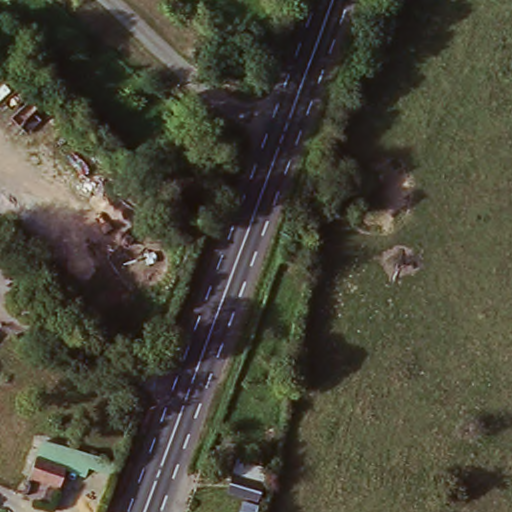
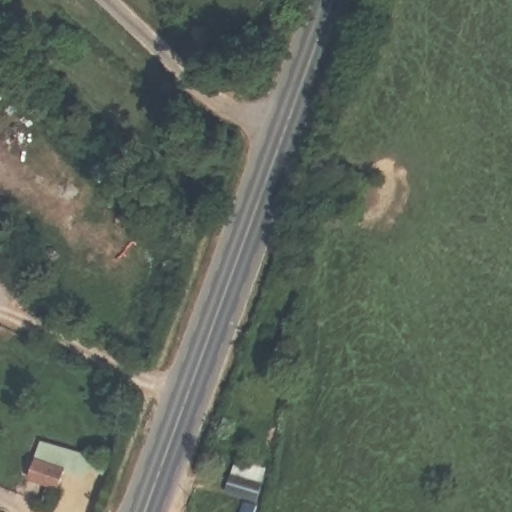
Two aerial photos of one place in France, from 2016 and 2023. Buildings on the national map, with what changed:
unchanged [(73,458),(58,499),(21,485),(35,444),(73,458)]
unchanged [(223,499),(233,460),(267,468),(257,507),(223,499)]

